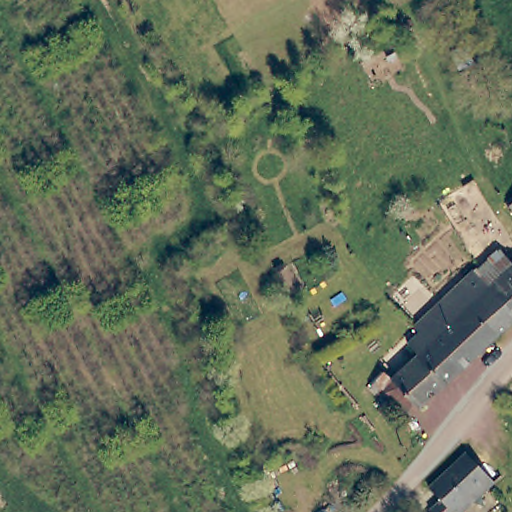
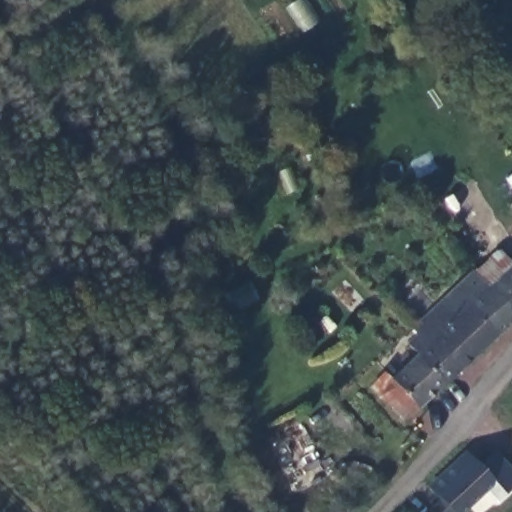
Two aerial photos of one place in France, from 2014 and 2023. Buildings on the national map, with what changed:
unchanged [(508,207),(512,203),(512,212),(508,207)]
unchanged [(441,337),(439,339),(438,341),(428,331),(422,325),(484,271),(498,285),(478,303),(503,331),(465,366),(441,337)]
unchanged [(478,303),(498,285),(512,272),(512,322),(503,331),(478,303)]
unchanged [(438,341),(439,339),(441,337),(465,366),(410,416),(379,382),(394,367),(401,375),(428,351),(418,340),(428,331),(438,341)]
unchanged [(432,497),(469,462),(493,487),(466,512),(445,512),(434,501),(432,497)]

